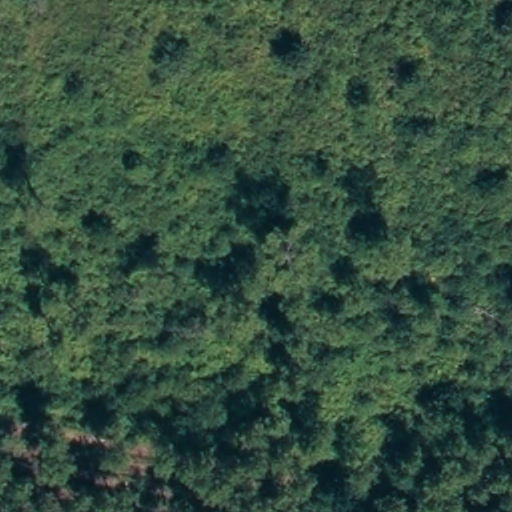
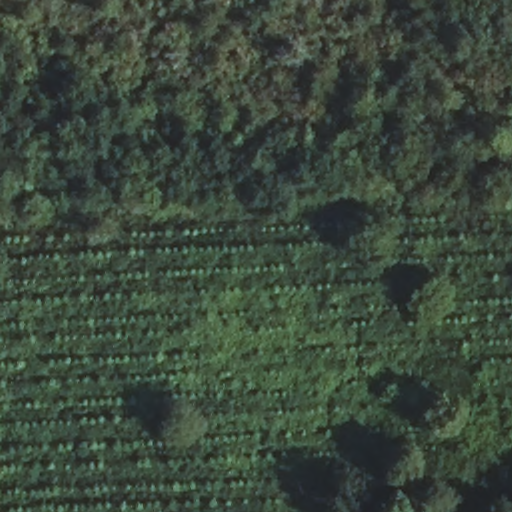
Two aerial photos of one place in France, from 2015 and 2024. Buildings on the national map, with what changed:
[]

